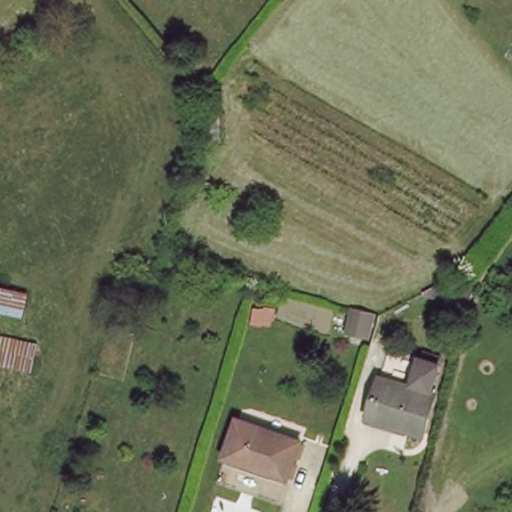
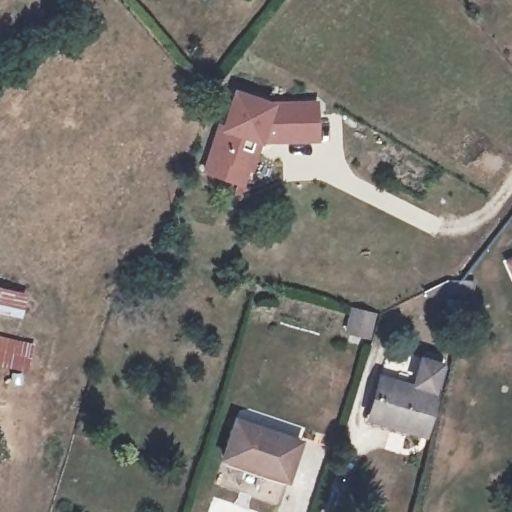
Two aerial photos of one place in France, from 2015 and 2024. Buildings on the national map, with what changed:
new [(204,172),(231,89),(274,102),(321,100),(320,142),(264,145),(254,172),(250,171),(245,186),(204,172)]
new [(504,262),(512,258),(512,279),(504,262)]
unchanged [(450,296),(457,277),(483,281),(478,301),(450,296)]
unchanged [(0,292),(26,297),(22,323),(0,319),(0,292)]
unchanged [(27,376),(0,368),(0,342),(32,349),(27,376)]
unchanged [(418,363),(439,370),(431,397),(434,398),(422,437),(368,421),(380,381),(410,390),(418,363)]
unchanged [(298,447),(285,483),(222,462),(234,426),(298,447)]

